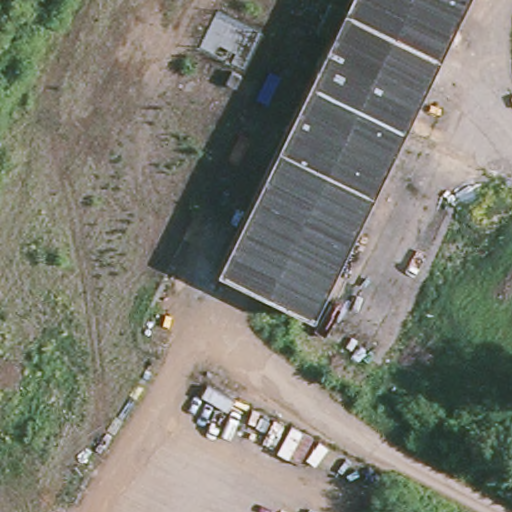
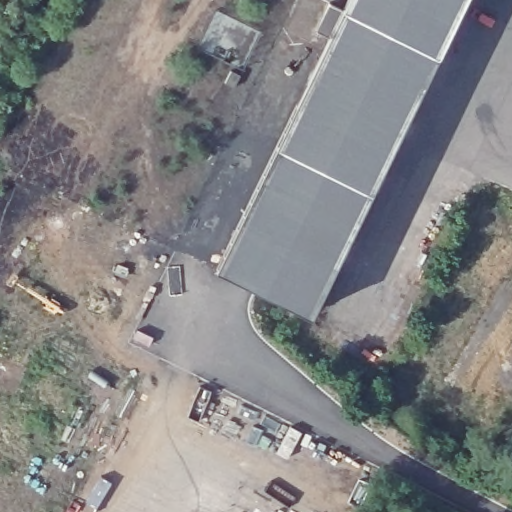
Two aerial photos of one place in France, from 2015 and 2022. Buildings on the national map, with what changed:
unchanged [(330,39),(316,32),(330,4),(344,10),(349,0),(466,0),(313,315),(217,270),(330,39)]

